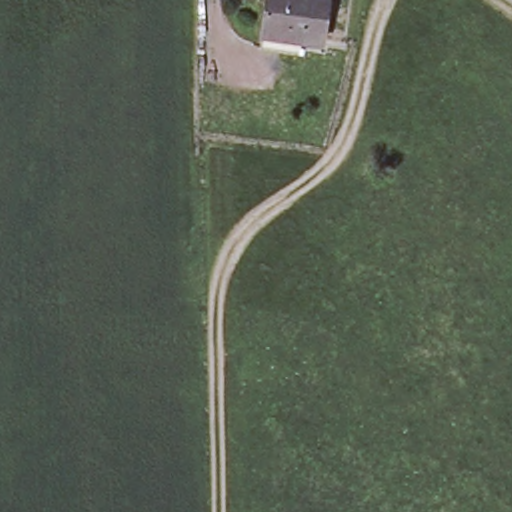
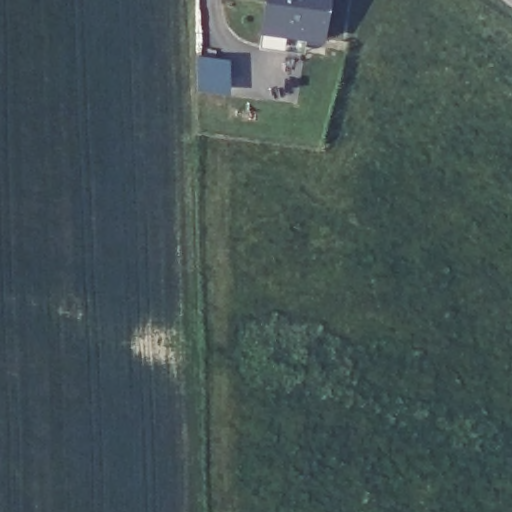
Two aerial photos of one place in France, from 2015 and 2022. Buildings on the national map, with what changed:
unchanged [(326,37),(265,30),(268,0),(331,0),(326,37)]
new [(230,62),(231,99),(200,95),(200,61),(230,62)]

